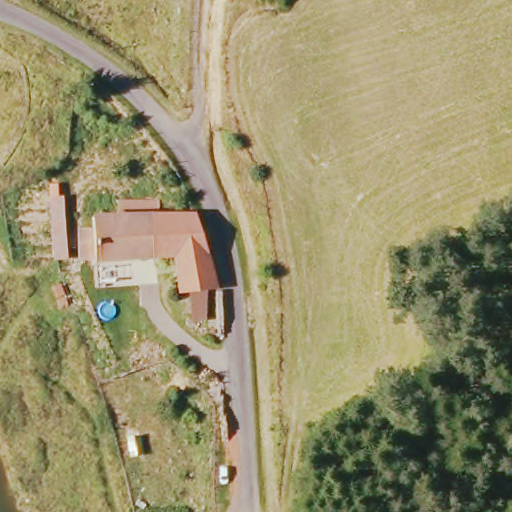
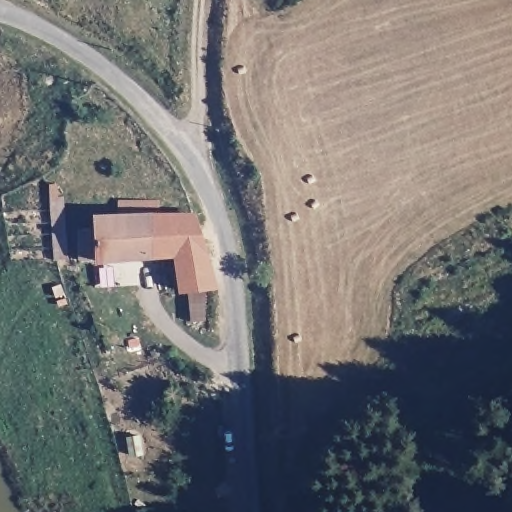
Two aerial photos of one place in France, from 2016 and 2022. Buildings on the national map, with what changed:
unchanged [(205,248),(208,264),(209,288),(173,287),(170,255),(94,257),(91,218),(194,214),(205,248)]

